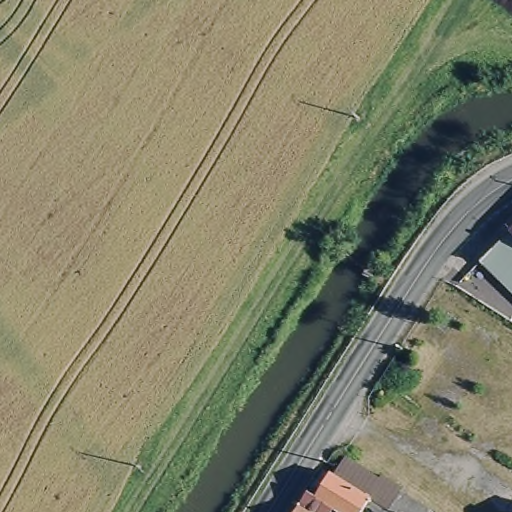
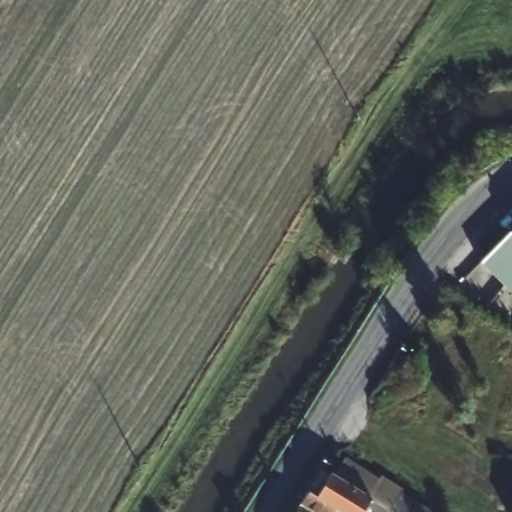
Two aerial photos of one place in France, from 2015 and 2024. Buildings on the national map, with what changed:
unchanged [(481,268),(494,254),(512,236),(512,295),(481,268)]
unchanged [(381,479),(384,475),(403,487),(399,492),(427,511),(426,512),(396,512),(384,505),(371,497),(363,492),(336,475),(346,458),(381,479)]
unchanged [(336,475),(363,492),(371,497),(361,512),(344,512),(336,508),(334,512),(318,512),(304,503),(311,492),(320,498),(336,475)]
unchanged [(318,512),(298,512),(304,503),(318,512)]

